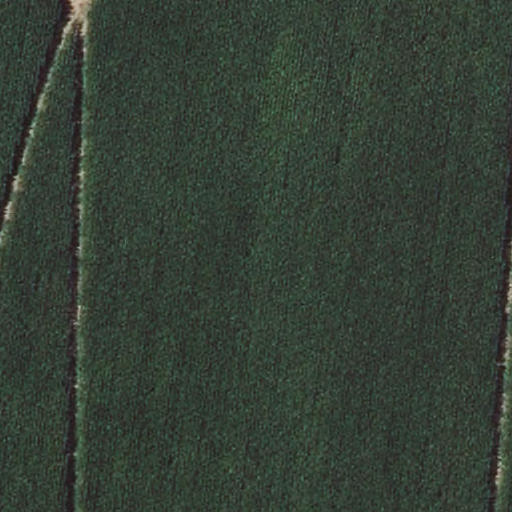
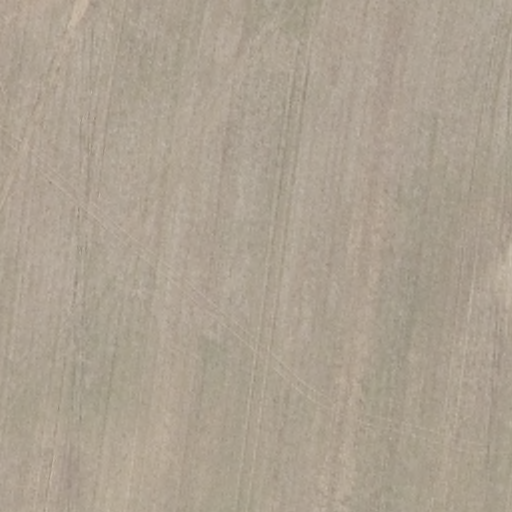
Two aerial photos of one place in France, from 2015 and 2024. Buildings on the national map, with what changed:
[]

